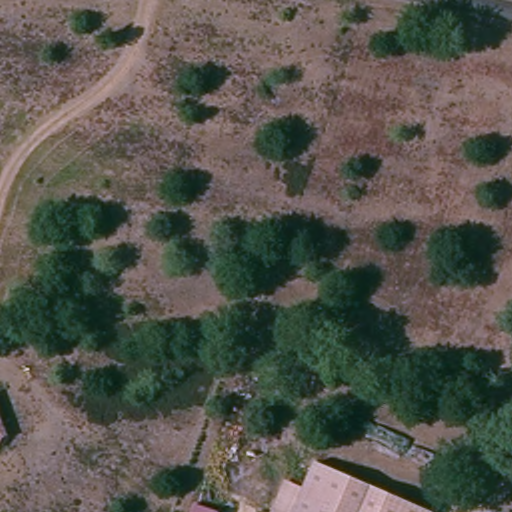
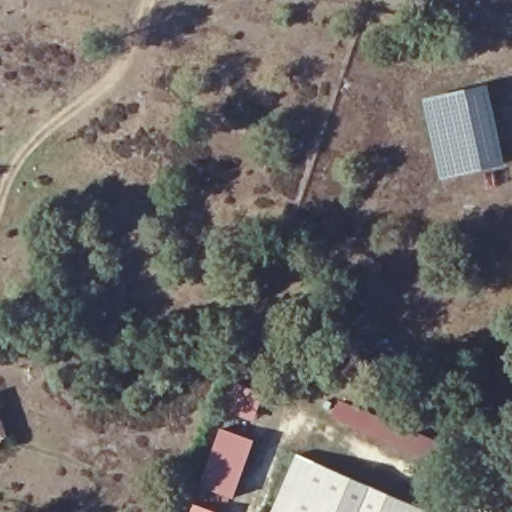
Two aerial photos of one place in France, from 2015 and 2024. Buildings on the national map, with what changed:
new [(441,180),(423,99),(490,85),(507,164),(441,180)]
unchanged [(11,435),(9,443),(0,445),(0,398),(15,432),(11,435)]
new [(439,441),(433,459),(334,417),(340,399),(439,441)]
new [(200,485),(220,429),(255,441),(235,497),(200,485)]
unchanged [(286,478),(304,485),(314,461),(433,512),(271,512),(286,478)]
unchanged [(215,512),(190,512),(193,504),(215,512)]

